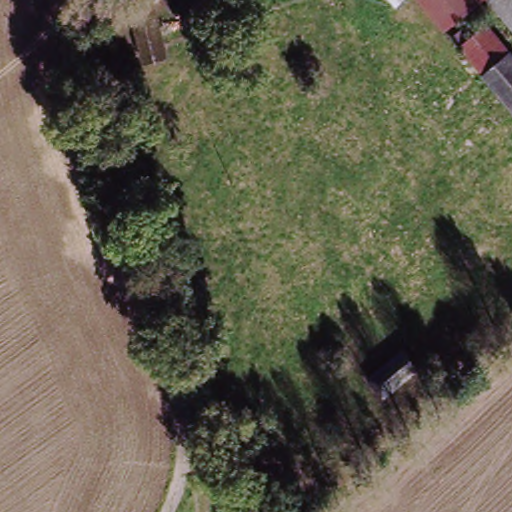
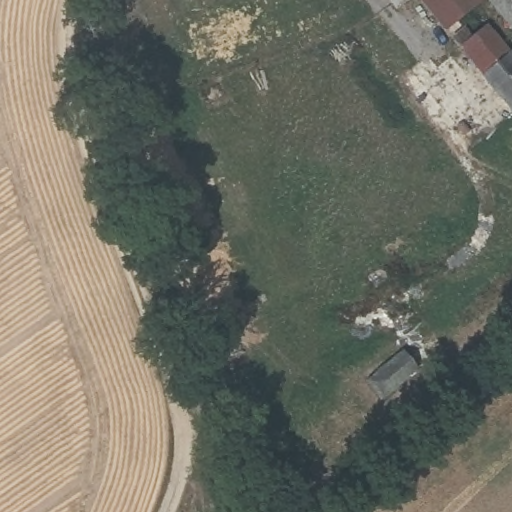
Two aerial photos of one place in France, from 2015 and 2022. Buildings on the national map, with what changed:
unchanged [(128,0),(150,0),(167,56),(145,64),(124,1),(128,0)]
unchanged [(395,13),(385,0),(413,0),(395,13)]
unchanged [(445,33),(417,0),(486,0),(445,33)]
unchanged [(489,0),(512,0),(512,28),(489,0)]
unchanged [(473,62),(500,40),(512,54),(512,108),(473,62)]
unchanged [(401,350),(417,367),(386,400),(370,381),(401,350)]

